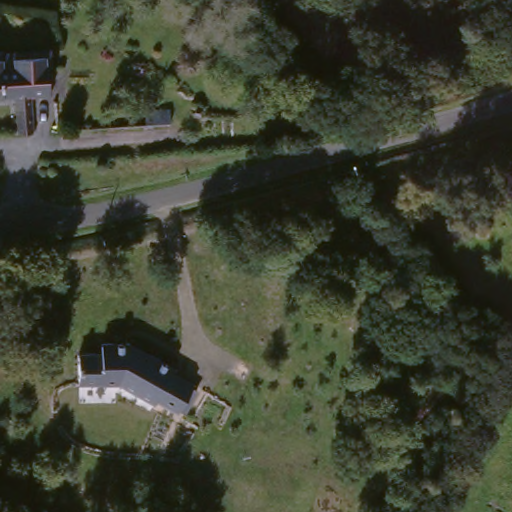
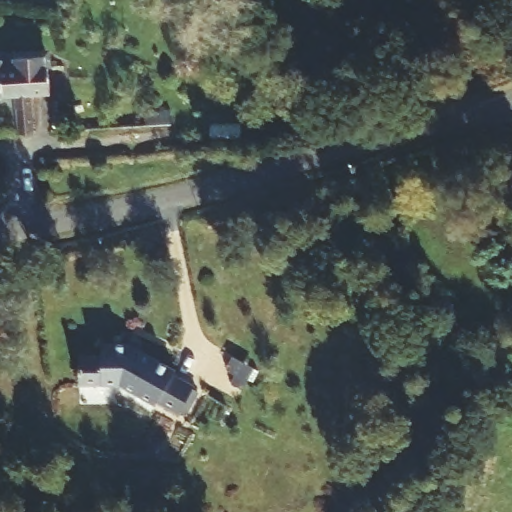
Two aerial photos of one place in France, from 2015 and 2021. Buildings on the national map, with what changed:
unchanged [(14,103),(0,104),(0,80),(49,77),(49,101),(31,102),(34,141),(18,142),(14,103)]
unchanged [(174,416),(110,385),(75,387),(74,356),(98,356),(98,343),(126,344),(194,382),(174,416)]

